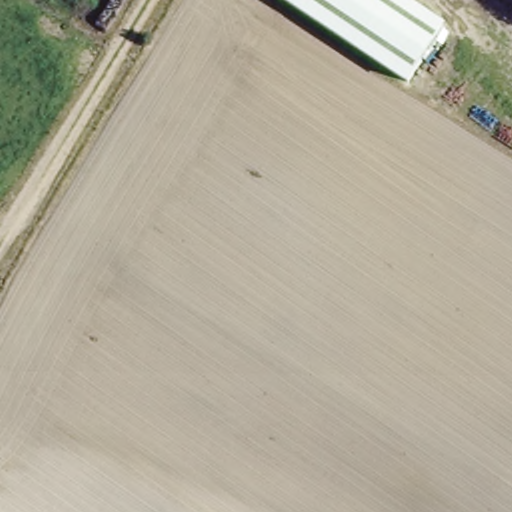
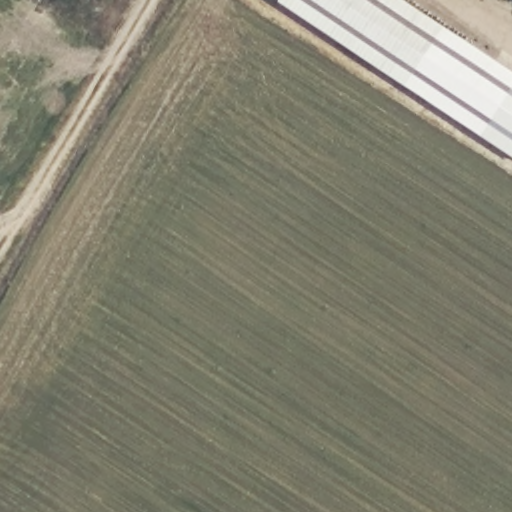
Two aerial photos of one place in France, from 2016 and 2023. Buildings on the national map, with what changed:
unchanged [(277,0),(410,0),(447,26),(406,86),(277,1),(277,0)]
new [(406,86),(447,26),(512,69),(512,97),(485,137),(406,86)]

